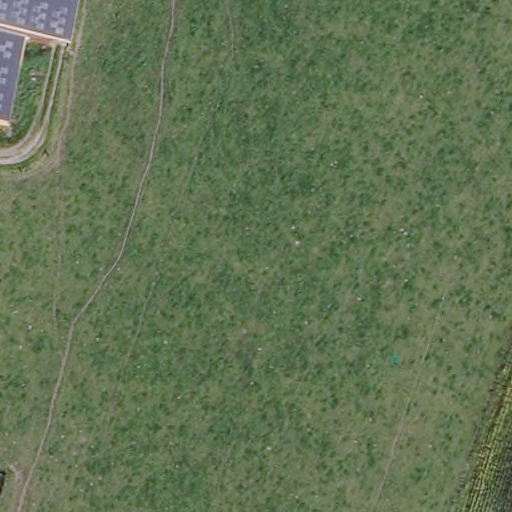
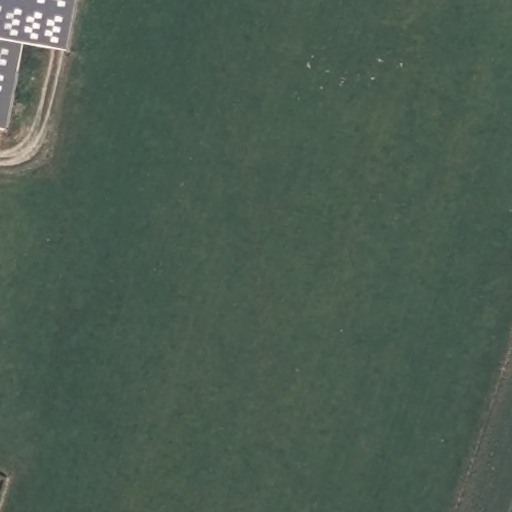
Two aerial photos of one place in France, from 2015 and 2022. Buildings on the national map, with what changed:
unchanged [(42,36),(22,124),(0,119),(0,0),(96,0),(85,46),(42,36)]

